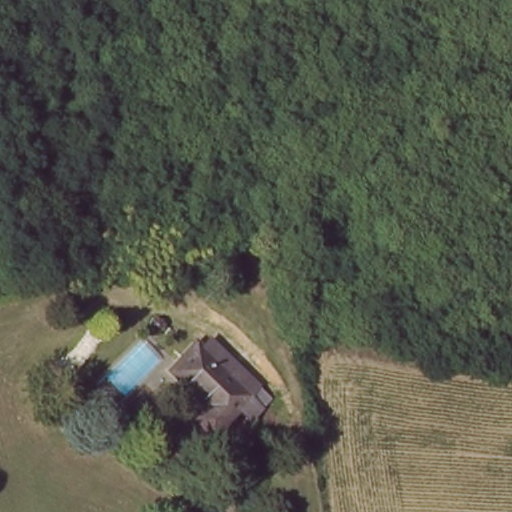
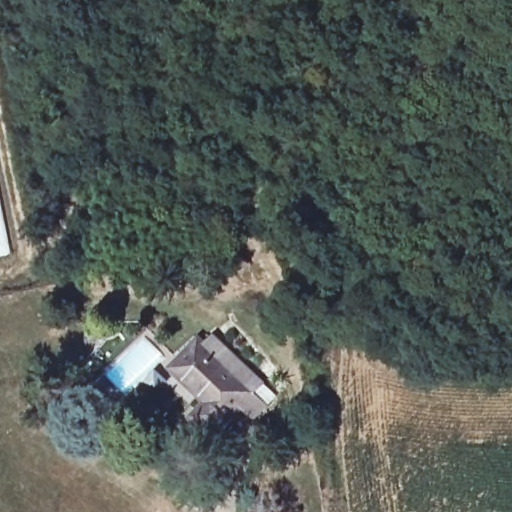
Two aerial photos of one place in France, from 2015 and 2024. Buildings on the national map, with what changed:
new [(12,255),(0,257),(0,192),(12,255)]
unchanged [(205,397),(165,360),(190,332),(247,381),(256,372),(267,382),(249,404),(236,393),(210,424),(193,410),(205,397)]

